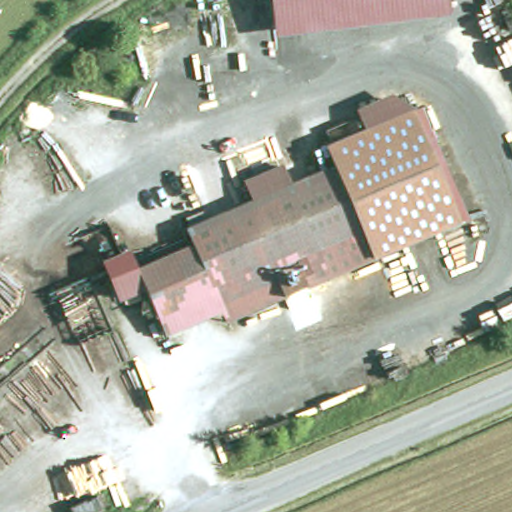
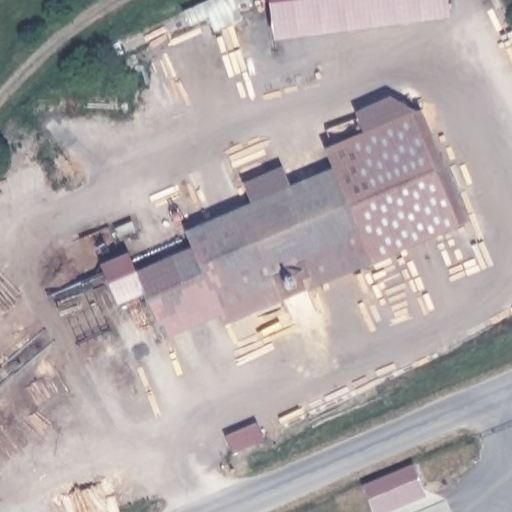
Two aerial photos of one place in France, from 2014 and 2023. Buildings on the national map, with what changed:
unchanged [(272,39),(269,0),(448,0),(450,17),(272,39)]
unchanged [(365,135),(356,109),(391,94),(420,114),(365,135)]
unchanged [(365,135),(420,114),(462,225),(285,296),(274,269),(162,317),(152,292),(142,270),(198,245),(192,229),(253,203),(292,187),(336,169),(328,150),(365,135)]
unchanged [(253,203),(245,180),(284,164),(292,187),(253,203)]
unchanged [(152,292),(121,301),(107,259),(133,249),(142,270),(152,292)]
unchanged [(226,322),(222,313),(170,334),(162,317),(274,269),(285,296),(226,322)]
new [(363,484),(413,463),(425,493),(380,512),(375,512),(363,484)]

